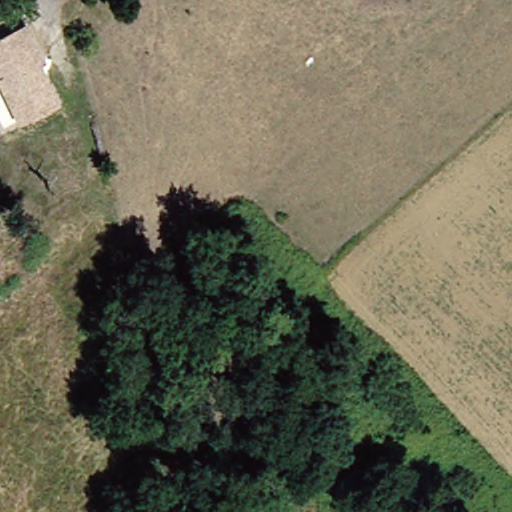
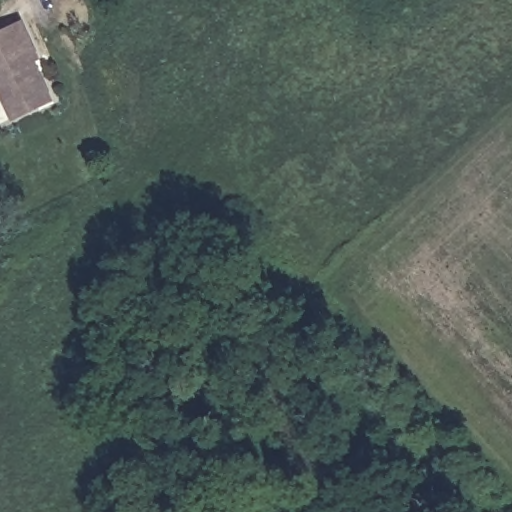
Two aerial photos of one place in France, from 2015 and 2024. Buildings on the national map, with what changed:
unchanged [(41,53),(37,55),(56,93),(21,112),(0,72),(7,69),(0,56),(0,33),(24,20),(41,53)]

